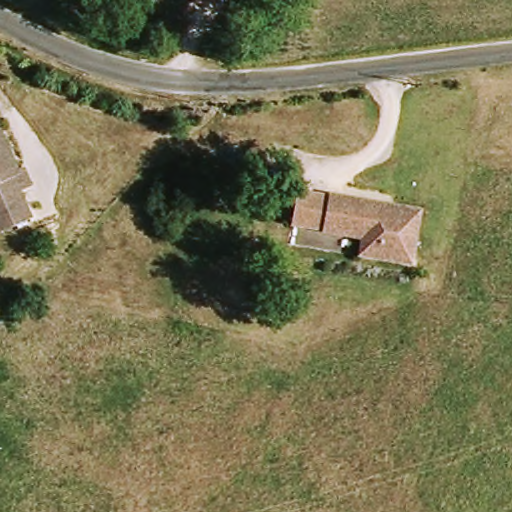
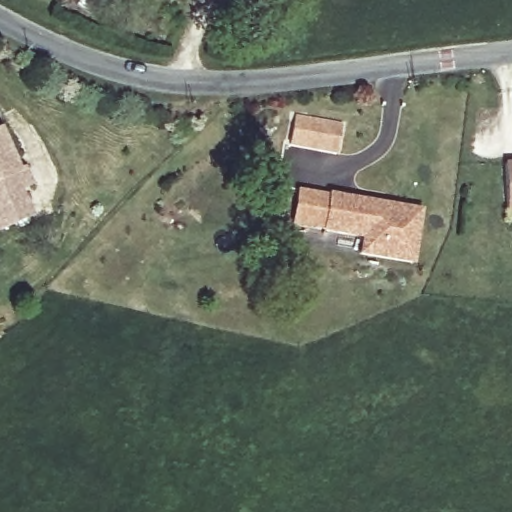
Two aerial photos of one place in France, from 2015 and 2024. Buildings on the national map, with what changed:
unchanged [(198,0),(203,0),(202,2),(198,0)]
new [(343,125),(338,155),(291,146),(296,116),(343,125)]
unchanged [(23,169),(29,184),(18,189),(33,217),(0,233),(0,135),(8,150),(18,172),(23,169)]
unchanged [(512,163),(512,214),(504,214),(504,163),(512,163)]
unchanged [(298,183),(328,188),(319,237),(289,233),(298,183)]
unchanged [(328,184),(381,194),(382,200),(388,202),(388,195),(421,200),(409,273),(356,264),(359,247),(319,240),(319,237),(328,188),(328,184)]

